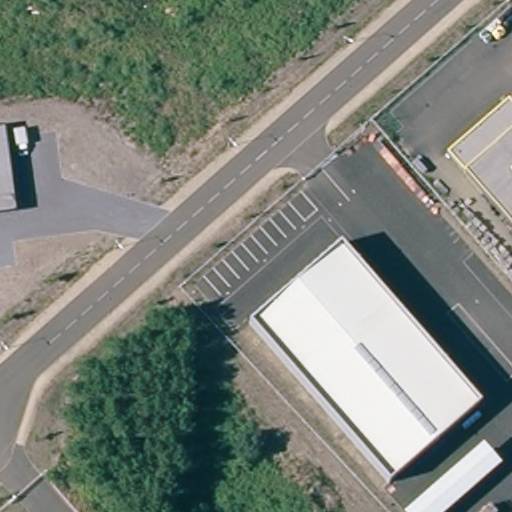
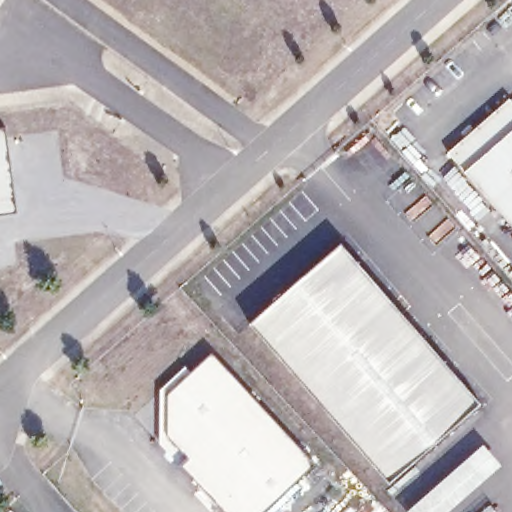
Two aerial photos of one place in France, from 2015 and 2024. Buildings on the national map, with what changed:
unchanged [(512,104),(512,227),(466,174),(448,150),(507,100),(512,104)]
unchanged [(16,212),(0,214),(0,128),(4,127),(16,212)]
unchanged [(339,245),(480,403),(390,480),(250,321),(339,245)]
new [(313,464),(262,512),(226,512),(159,442),(160,388),(186,366),(192,370),(212,352),(313,464)]
unchanged [(482,445),(501,464),(447,512),(402,512),(482,445)]

